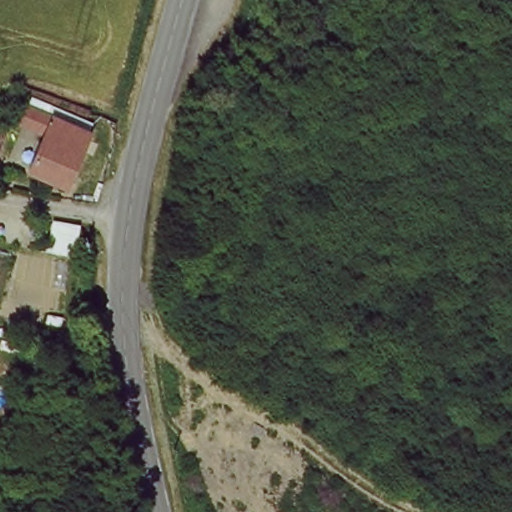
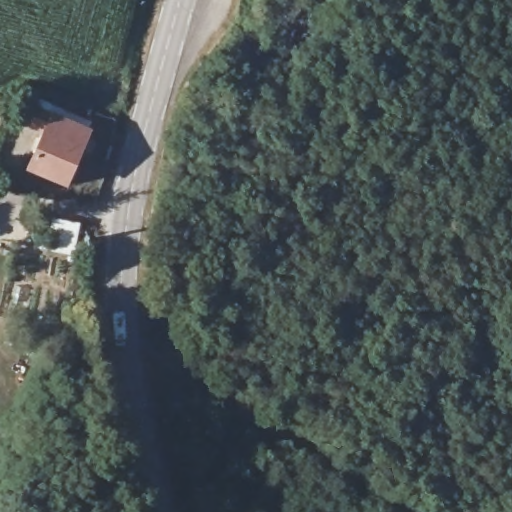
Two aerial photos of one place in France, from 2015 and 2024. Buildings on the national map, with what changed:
unchanged [(27,109),(87,132),(69,186),(32,170),(45,131),(23,121),(27,109)]
unchanged [(78,250),(49,247),(53,219),(80,227),(78,250)]

